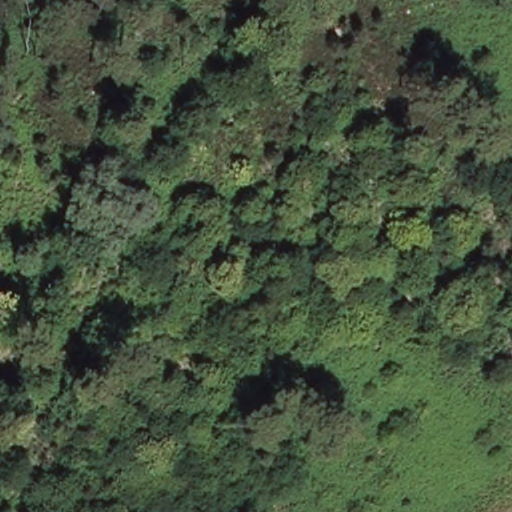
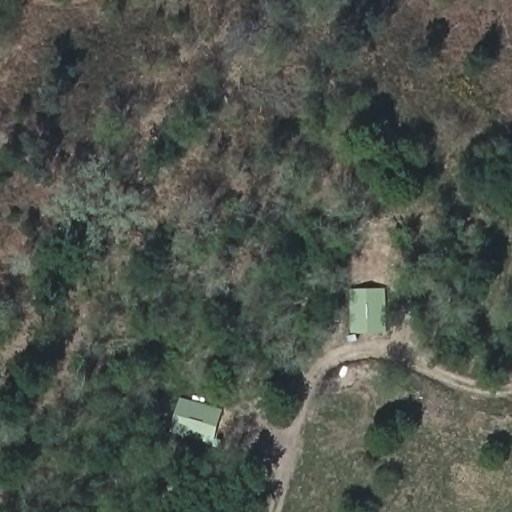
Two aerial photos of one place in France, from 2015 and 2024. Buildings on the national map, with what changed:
new [(387,287),(388,332),(351,334),(350,289),(387,287)]

